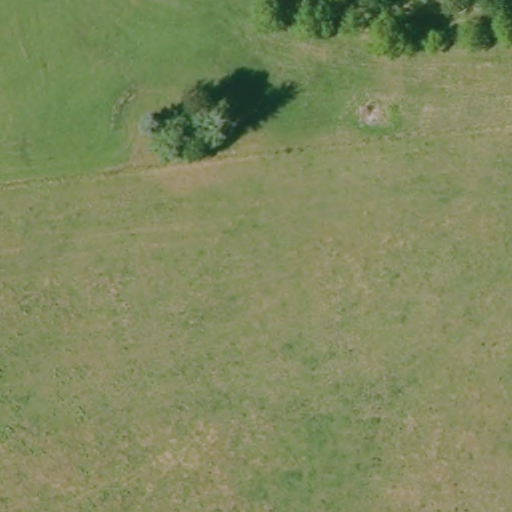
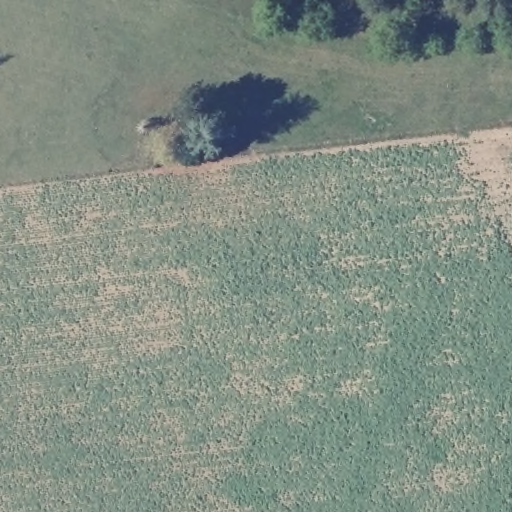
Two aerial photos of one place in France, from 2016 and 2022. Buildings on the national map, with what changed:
[]

